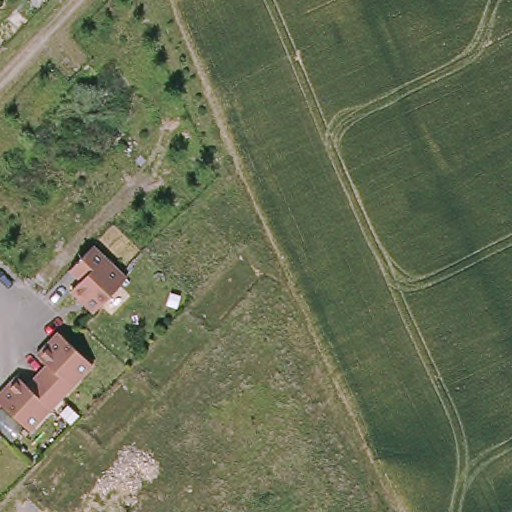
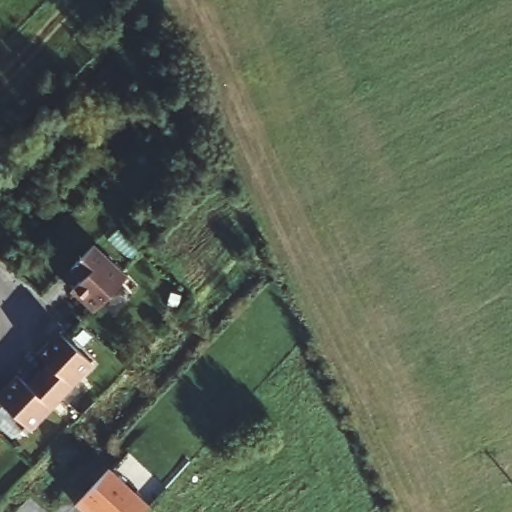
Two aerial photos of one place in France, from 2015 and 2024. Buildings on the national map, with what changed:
unchanged [(77,276),(68,271),(97,243),(127,272),(91,309),(65,289),(77,276)]
unchanged [(35,423),(0,395),(0,393),(18,373),(29,381),(51,357),(41,352),(58,331),(95,361),(35,423)]
new [(146,509),(143,512),(77,512),(72,508),(105,472),(146,509)]

